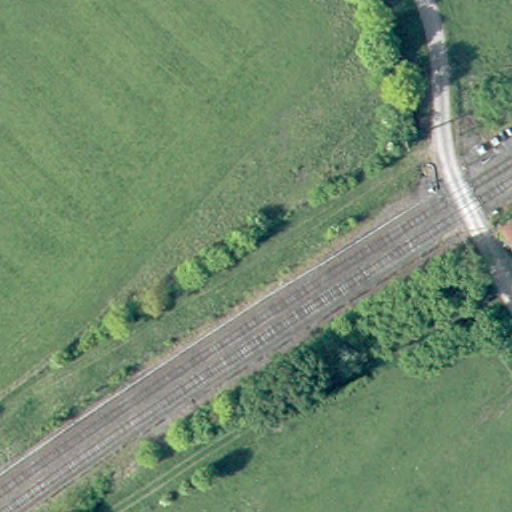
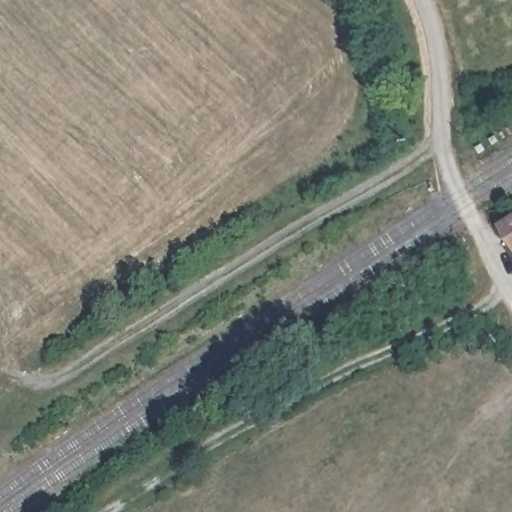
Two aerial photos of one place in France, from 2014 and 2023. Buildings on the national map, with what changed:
unchanged [(508,227),(512,224),(512,233),(508,227)]

